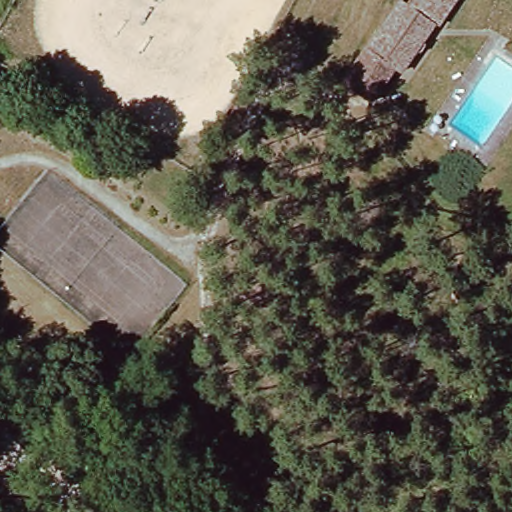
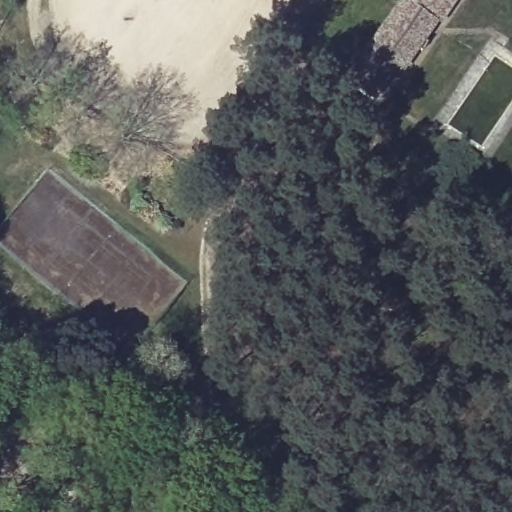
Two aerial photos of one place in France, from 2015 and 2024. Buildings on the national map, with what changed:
unchanged [(393,69),(369,100),(344,83),(367,49),(376,54),(381,47),(373,41),(383,28),(403,0),(410,5),(414,0),(455,0),(402,75),(393,69)]

